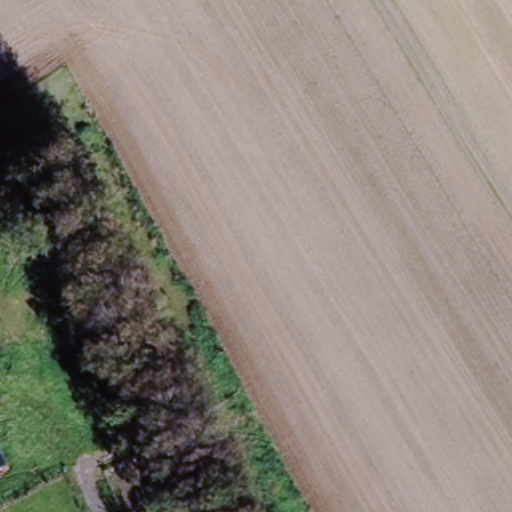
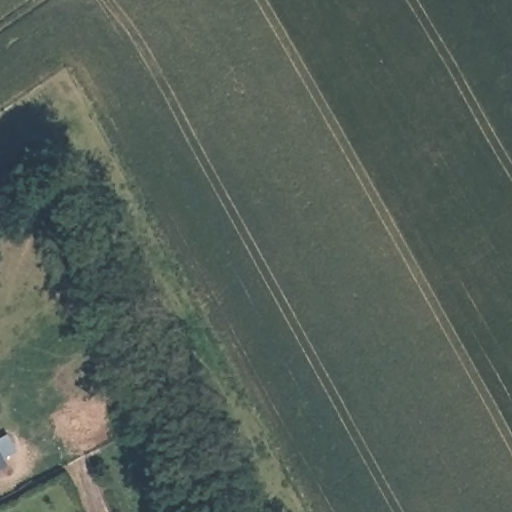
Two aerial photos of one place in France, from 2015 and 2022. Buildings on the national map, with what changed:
[]

